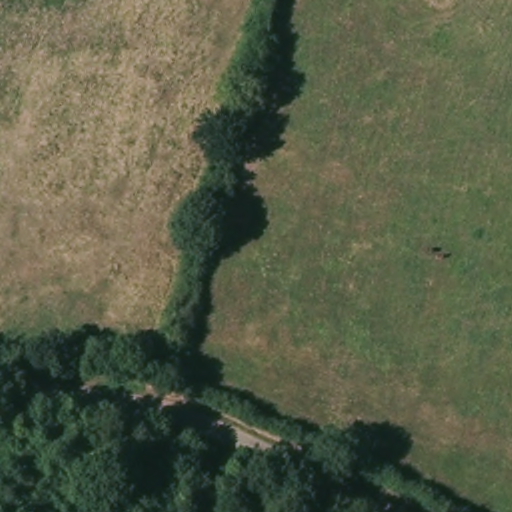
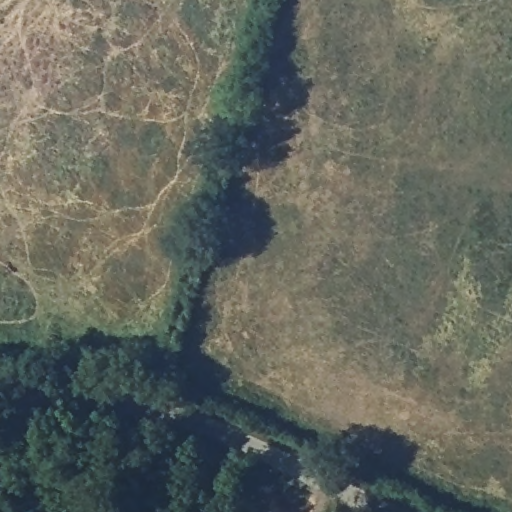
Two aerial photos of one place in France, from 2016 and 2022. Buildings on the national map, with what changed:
unchanged [(106,456),(103,487),(83,485),(83,480),(46,475),(49,450),(106,456)]

